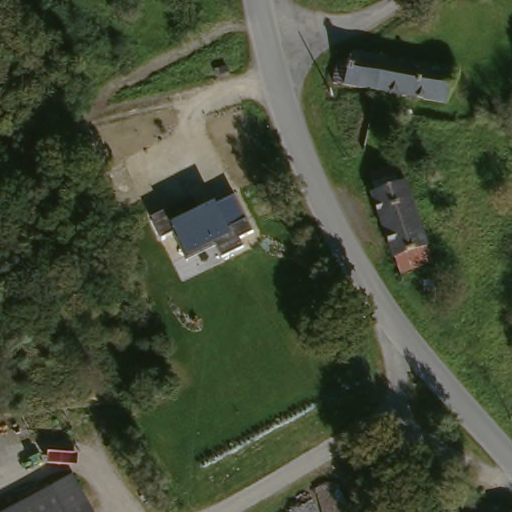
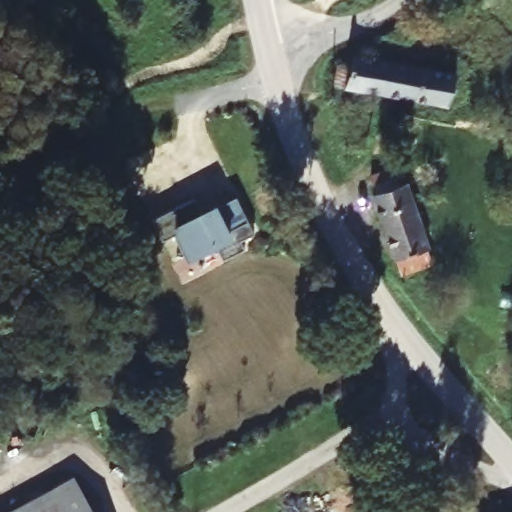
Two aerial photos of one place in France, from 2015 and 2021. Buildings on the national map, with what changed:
unchanged [(400,59),(393,91),(348,82),(352,62),(365,64),(367,52),(400,59)]
unchanged [(400,59),(467,71),(461,102),(393,91),(400,59)]
unchanged [(407,272),(402,256),(380,191),(383,190),(377,170),(397,163),(405,182),(412,179),(435,245),(432,245),(437,261),(407,272)]
unchanged [(253,232),(239,239),(242,247),(221,258),(215,249),(185,262),(171,235),(162,239),(152,219),(166,211),(172,226),(235,196),(253,232)]
unchanged [(78,472),(100,512),(6,512),(78,472)]
unchanged [(451,503),(477,497),(480,512),(453,512),(451,503)]

